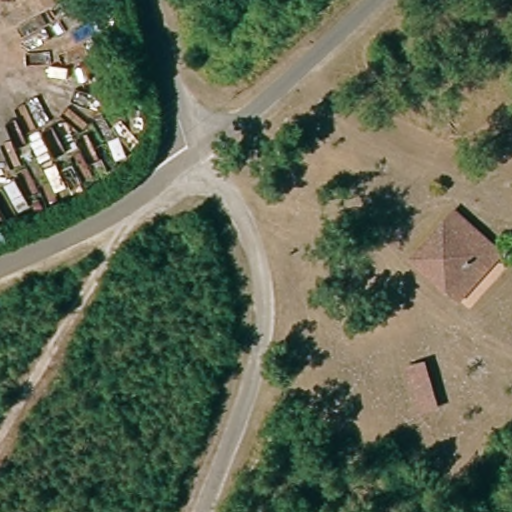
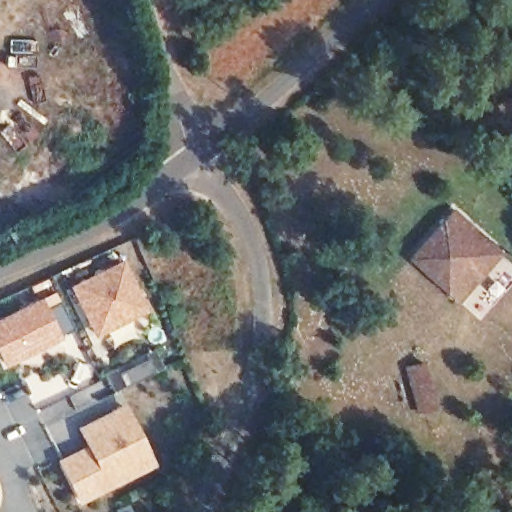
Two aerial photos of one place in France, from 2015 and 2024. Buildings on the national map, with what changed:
unchanged [(449,295),(406,256),(437,227),(451,214),(501,259),(491,272),(462,307),(449,295)]
new [(70,287),(124,261),(148,312),(95,336),(70,287)]
new [(5,367),(0,356),(0,320),(41,299),(47,309),(60,303),(72,329),(59,335),(60,340),(5,367)]
new [(87,446),(79,428),(125,405),(156,466),(80,503),(59,461),(87,446)]

